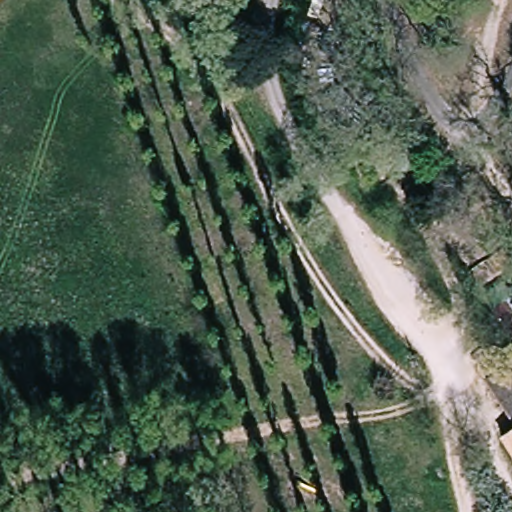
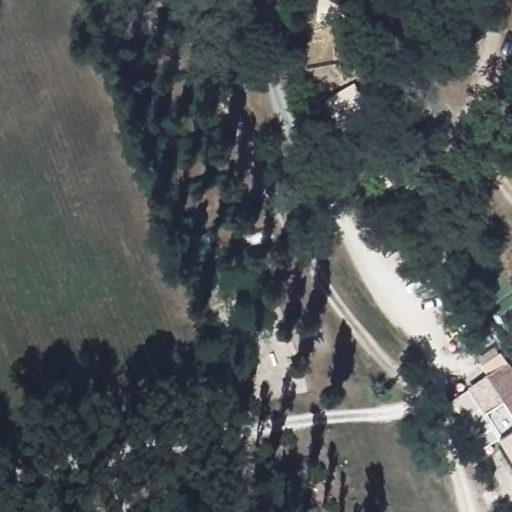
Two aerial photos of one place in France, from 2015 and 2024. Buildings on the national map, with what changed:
new [(485,417),(468,388),(487,374),(490,378),(509,365),(512,369),(512,433),(499,440),(485,417)]
unchanged [(512,461),(499,440),(512,433),(512,461)]

